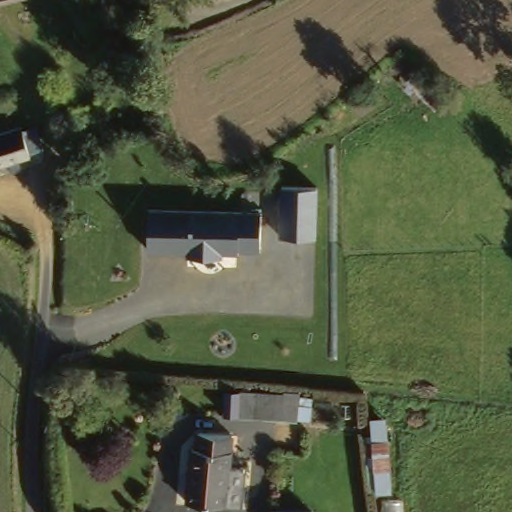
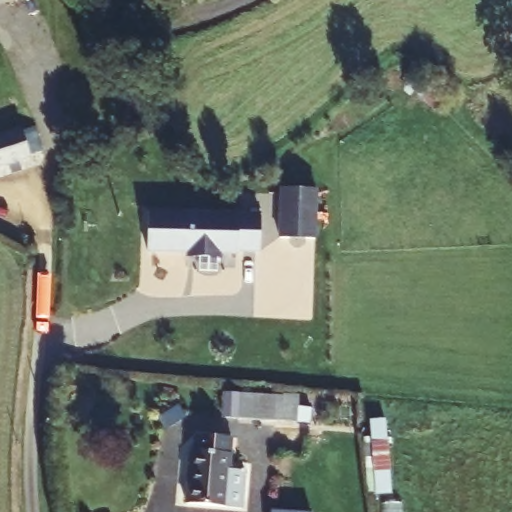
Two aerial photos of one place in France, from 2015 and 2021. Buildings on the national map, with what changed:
unchanged [(26,1),(0,5),(0,0),(25,0),(26,1)]
unchanged [(21,131),(30,159),(0,172),(0,138),(21,131)]
unchanged [(314,204),(310,253),(274,251),(278,202),(314,204)]
unchanged [(232,253),(232,255),(214,254),(214,258),(181,256),(181,253),(142,251),(144,211),(256,217),(254,254),(232,253)]
unchanged [(298,398),(295,423),(222,417),(224,392),(298,398)]
unchanged [(237,512),(224,511),(179,507),(183,458),(191,459),(193,439),(229,442),(228,460),(247,462),(243,512),(237,512)]

